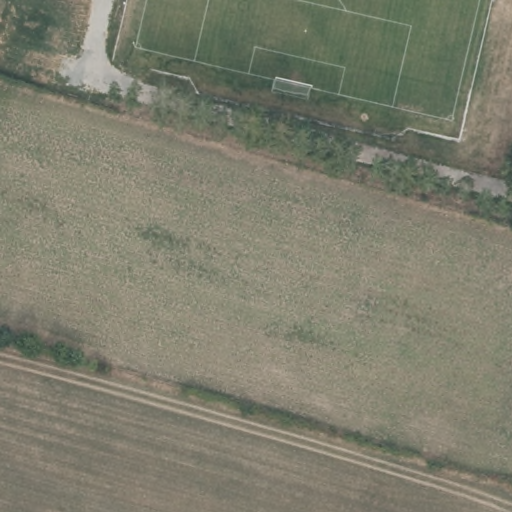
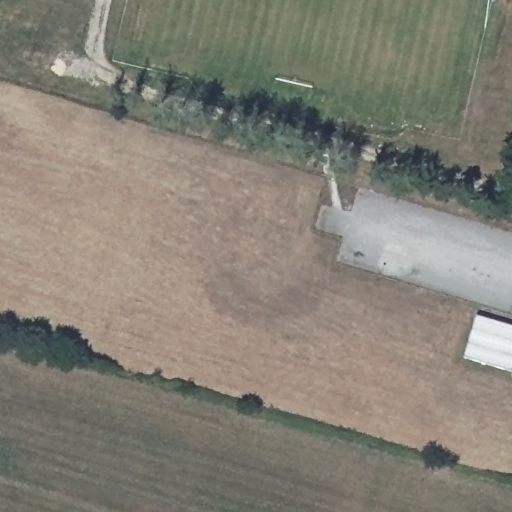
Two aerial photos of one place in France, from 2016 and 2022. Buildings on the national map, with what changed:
new [(512,325),(512,366),(511,371),(463,356),(475,314),(512,325)]

